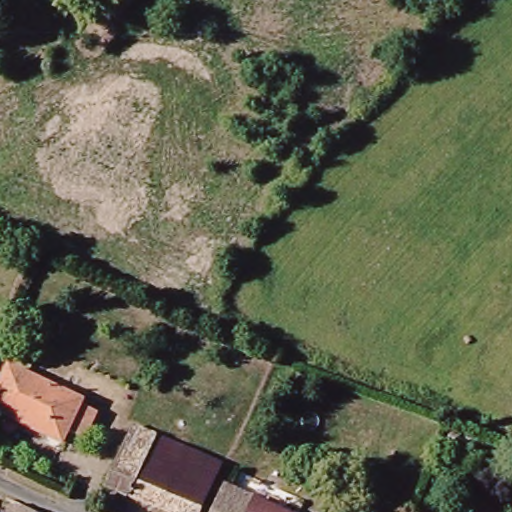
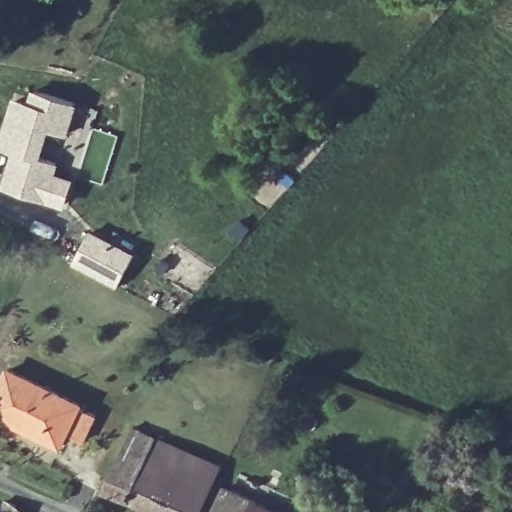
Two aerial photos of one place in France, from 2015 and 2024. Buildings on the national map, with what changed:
new [(11,101),(27,106),(31,90),(72,104),(62,134),(44,129),(35,157),(53,162),(49,175),(67,181),(59,205),(1,186),(12,150),(0,147),(0,135),(11,101)]
new [(88,231),(133,254),(118,285),(73,262),(88,231)]
unchanged [(92,408),(81,433),(63,426),(58,439),(21,424),(23,420),(0,410),(0,378),(4,369),(92,408)]
unchanged [(151,435),(183,449),(187,440),(221,455),(195,512),(141,512),(101,494),(127,435),(147,444),(151,435)]
unchanged [(275,512),(216,512),(226,490),(275,512)]
unchanged [(17,512),(8,512),(11,508),(17,512)]

